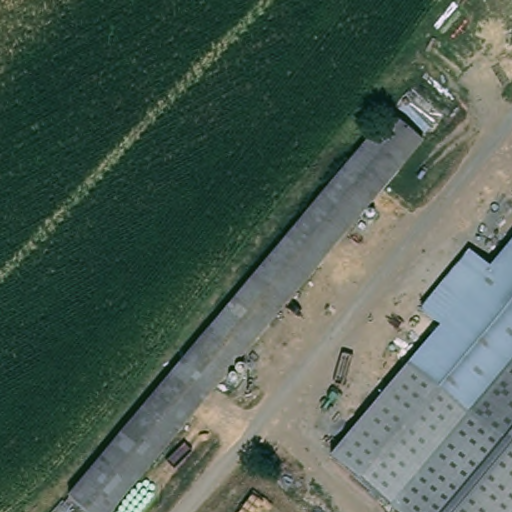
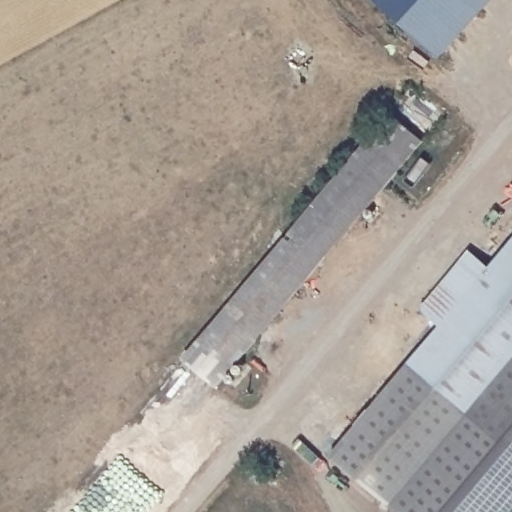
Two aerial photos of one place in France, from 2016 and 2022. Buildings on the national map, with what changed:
new [(377,0),(493,0),(441,58),(377,0)]
unchanged [(387,114),(418,142),(108,512),(84,512),(68,499),(387,114)]
unchanged [(497,265),(497,264),(512,247),(512,277),(497,264),(497,265)]
unchanged [(512,313),(511,314),(510,314),(480,288),(478,287),(447,324),(443,329),(425,312),(475,254),(493,269),(497,265),(497,264),(512,277),(512,313)]
unchanged [(443,329),(447,324),(480,288),(510,314),(511,314),(512,313),(512,390),(482,426),(471,416),(442,391),(412,366),(414,363),(443,329)]
unchanged [(512,451),(512,512),(394,512),(327,456),(406,361),(412,366),(482,426),(512,451)]
unchanged [(512,451),(482,426),(512,390),(512,451)]

